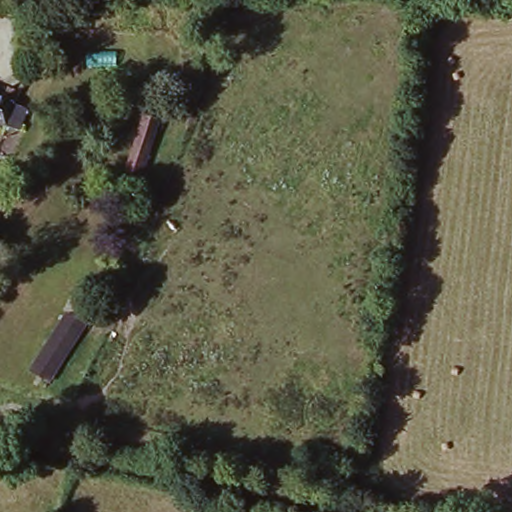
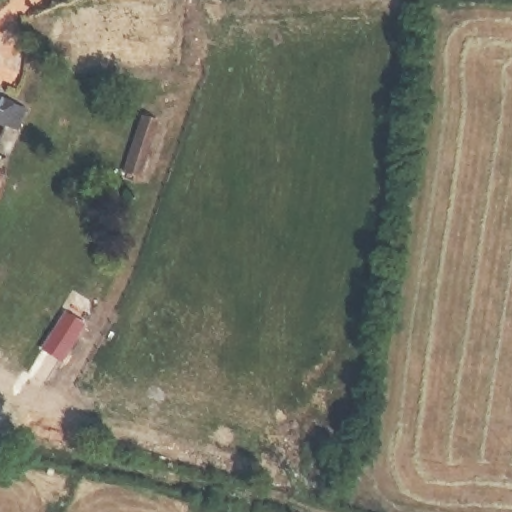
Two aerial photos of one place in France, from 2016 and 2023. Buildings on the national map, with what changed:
unchanged [(15,131),(0,126),(0,100),(23,107),(15,131)]
unchanged [(164,128),(148,180),(132,174),(148,123),(164,128)]
unchanged [(88,330),(50,388),(30,374),(66,317),(88,330)]

